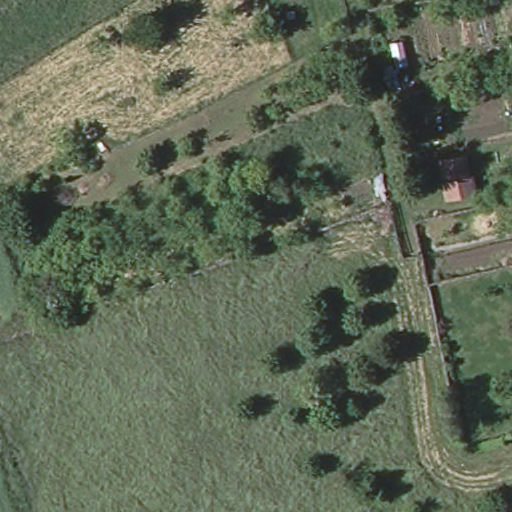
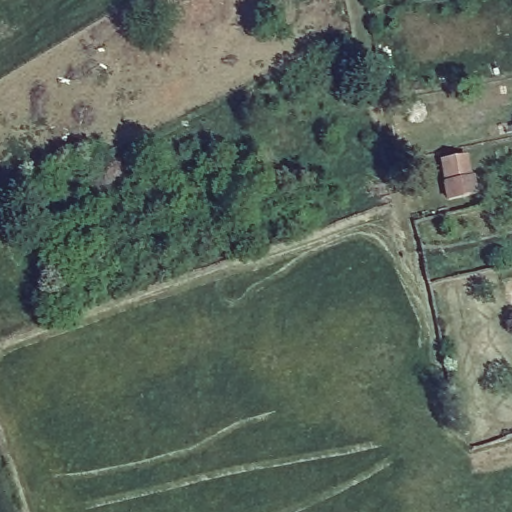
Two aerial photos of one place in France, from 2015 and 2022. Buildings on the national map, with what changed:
unchanged [(475,180),(476,196),(450,200),(447,183),(475,180)]

